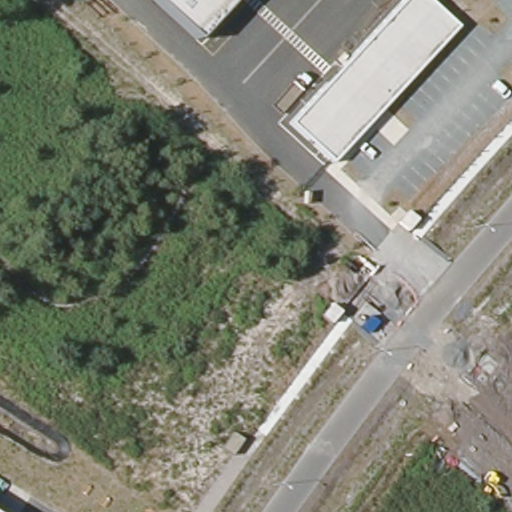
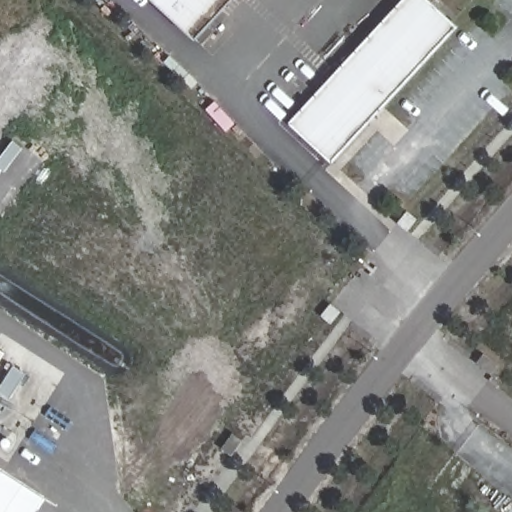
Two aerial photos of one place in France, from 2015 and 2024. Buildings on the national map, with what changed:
unchanged [(196,36),(157,0),(231,0),(196,36)]
unchanged [(333,160),(293,122),(400,0),(427,0),(456,26),(333,160)]
new [(35,512),(0,512),(0,469),(45,497),(35,512)]

